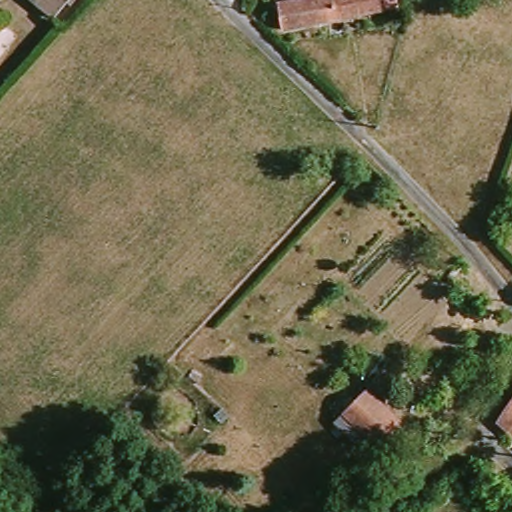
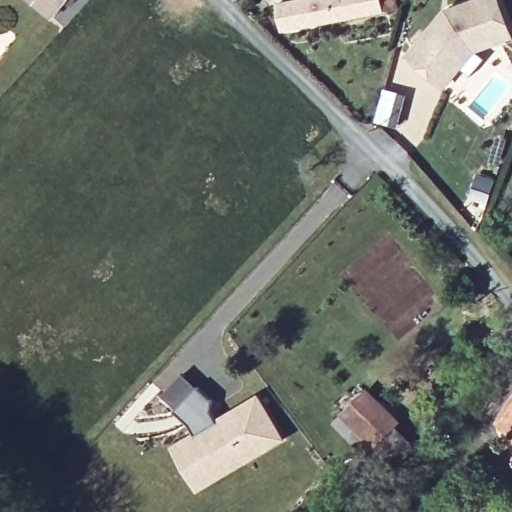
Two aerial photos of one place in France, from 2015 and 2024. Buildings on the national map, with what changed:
unchanged [(62,0),(75,0),(70,7),(62,0)]
unchanged [(397,0),(397,10),(282,27),(278,1),(284,0),(397,0)]
new [(511,0),(511,38),(486,38),(445,88),(409,60),(457,0),(511,0)]
new [(195,432),(191,425),(176,410),(199,387),(212,402),(210,413),(215,419),(259,395),(285,439),(200,492),(173,446),(195,432)]
new [(405,425),(372,459),(332,423),(366,387),(405,425)]

